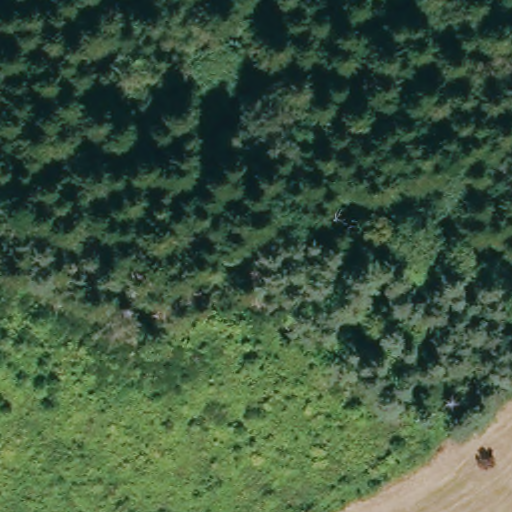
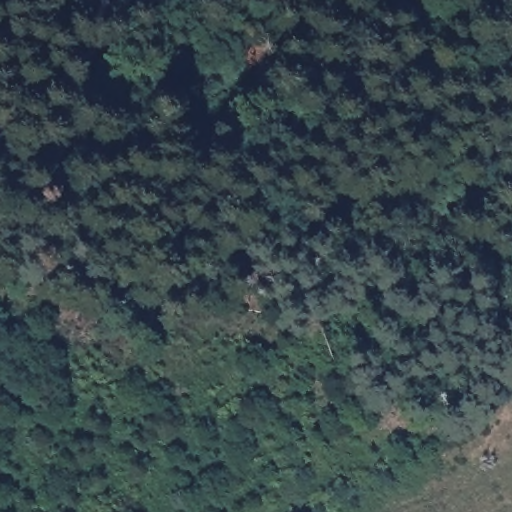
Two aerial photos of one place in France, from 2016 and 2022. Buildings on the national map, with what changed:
[]

